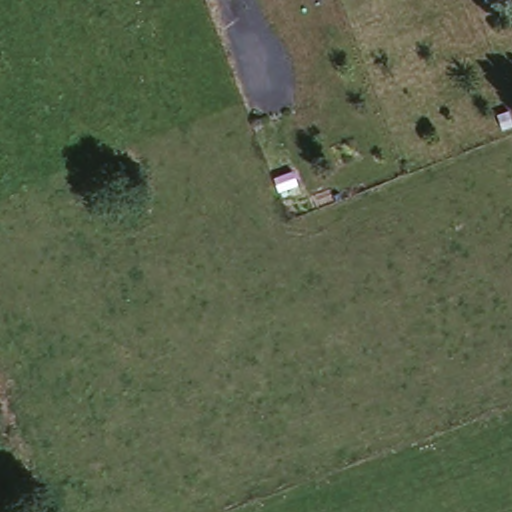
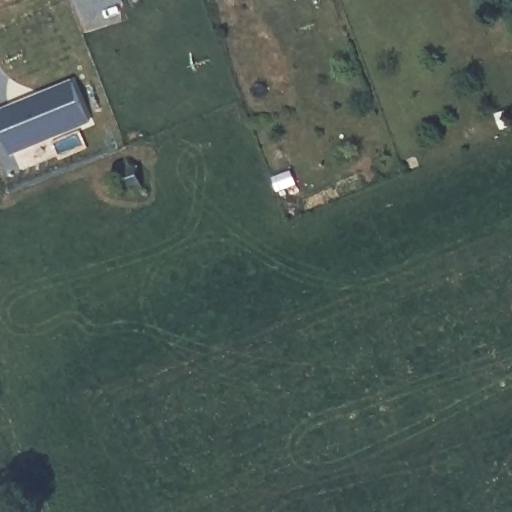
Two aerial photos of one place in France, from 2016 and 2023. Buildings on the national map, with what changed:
new [(90,120),(81,124),(82,127),(13,156),(0,124),(0,112),(75,81),(90,120)]
unchanged [(135,167),(142,189),(120,197),(113,174),(135,167)]

